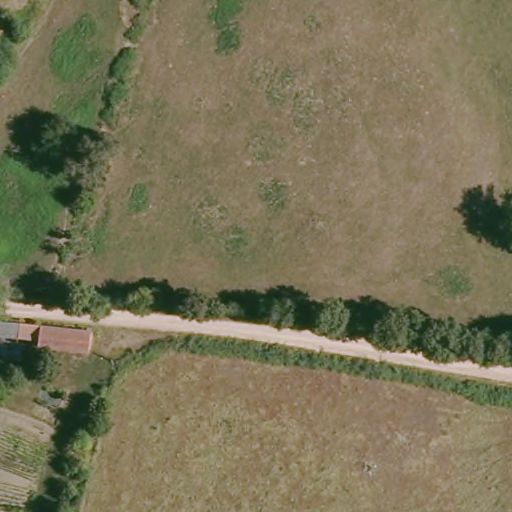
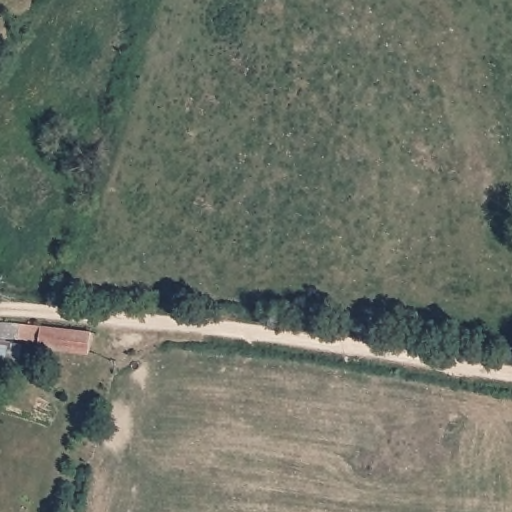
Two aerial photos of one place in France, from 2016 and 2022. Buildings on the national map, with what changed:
unchanged [(12,328),(21,328),(20,342),(12,342),(0,342),(0,327),(12,328)]
unchanged [(91,350),(40,349),(40,328),(77,329),(91,329),(91,350)]
unchanged [(18,354),(18,368),(0,368),(0,349),(18,354)]

